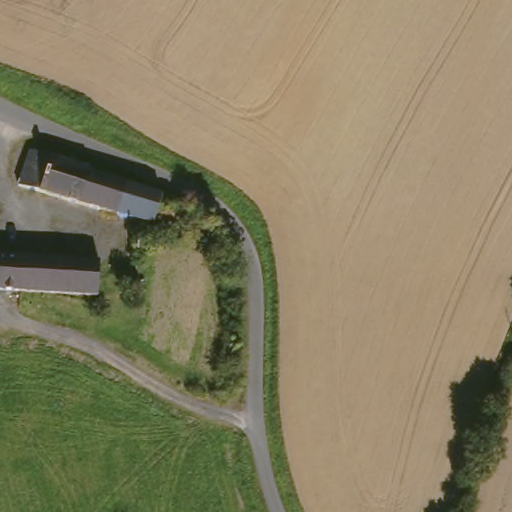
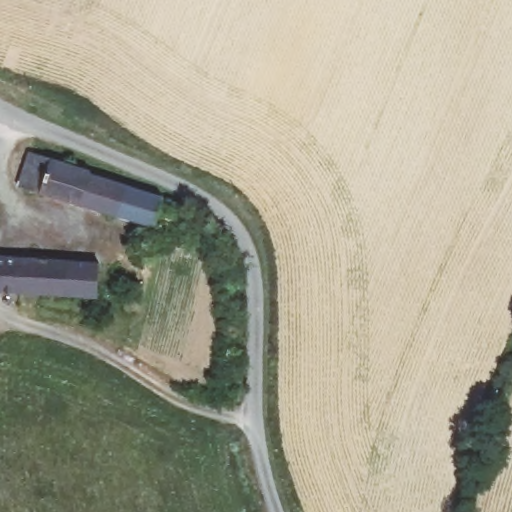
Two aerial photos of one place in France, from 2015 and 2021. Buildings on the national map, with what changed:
unchanged [(148,221),(146,226),(132,222),(54,199),(11,186),(22,152),(41,157),(44,158),(74,167),(78,168),(79,169),(82,169),(83,170),(82,173),(144,193),(148,194),(150,195),(155,196),(154,199),(180,212),(179,216),(174,230),(149,221),(148,221)]
unchanged [(12,292),(0,291),(0,257),(14,258),(12,292)]
unchanged [(96,297),(91,297),(52,294),(17,292),(12,292),(14,258),(31,259),(98,263),(96,297)]

